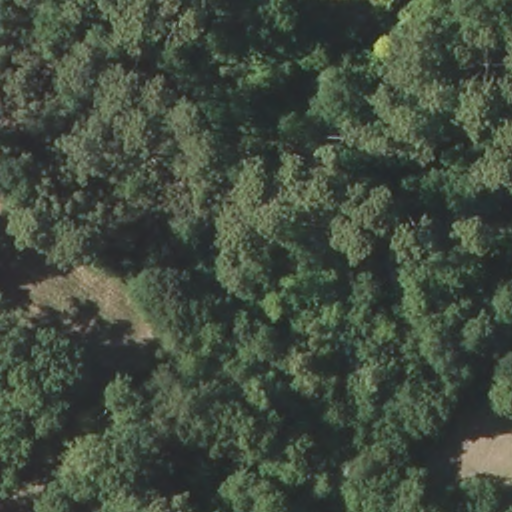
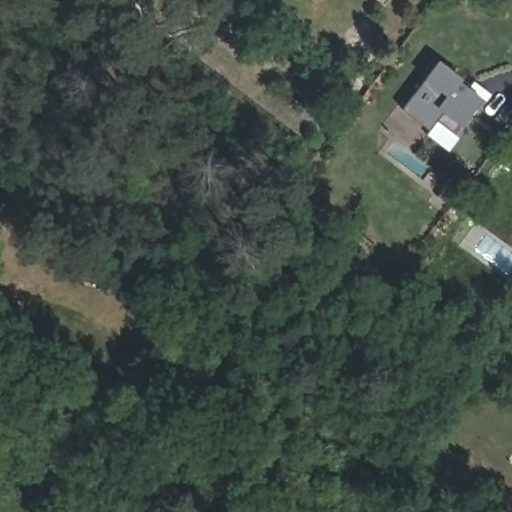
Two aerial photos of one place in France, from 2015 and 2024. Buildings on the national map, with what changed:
unchanged [(380,0),(388,0),(385,4),(380,0)]
new [(404,109),(427,79),(441,61),(465,79),(463,82),(484,98),(464,126),(457,132),(438,119),(430,130),(404,109)]

